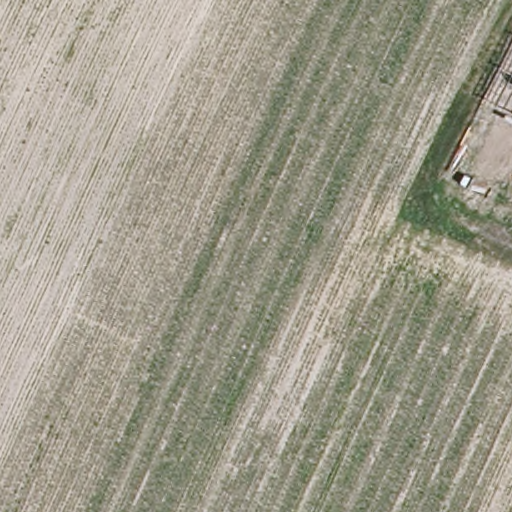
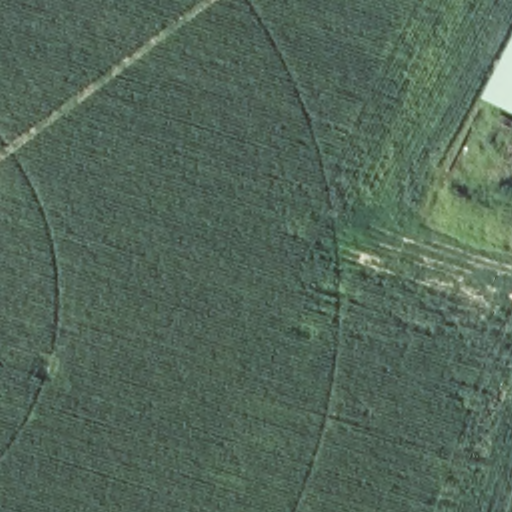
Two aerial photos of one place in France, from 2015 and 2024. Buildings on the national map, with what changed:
new [(481,97),(512,38),(512,113),(481,97)]

